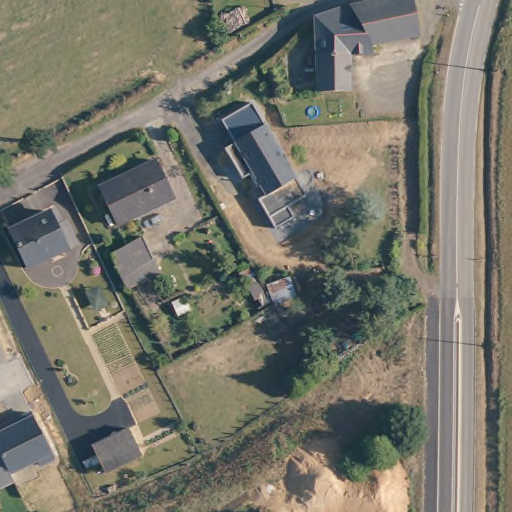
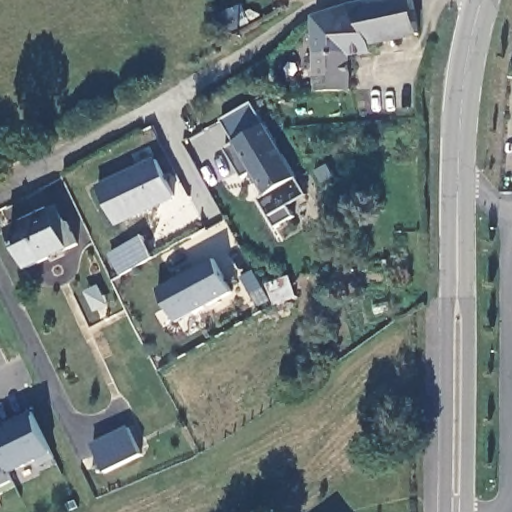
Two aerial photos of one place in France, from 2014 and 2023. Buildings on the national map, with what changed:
unchanged [(407,0),(417,0),(422,37),(376,48),(377,56),(354,58),(355,93),(323,94),(321,26),(321,18),(407,0)]
unchanged [(288,206),(295,217),(277,228),(260,199),(265,197),(252,174),(243,178),(226,149),(237,142),(223,120),(252,103),(307,195),(307,196),(288,206)]
unchanged [(158,159),(174,196),(117,224),(98,187),(158,159)]
unchanged [(33,273),(13,233),(55,213),(61,227),(69,223),(82,249),(33,273)]
unchanged [(112,253),(141,236),(152,258),(122,275),(112,253)]
new [(213,259),(234,293),(177,324),(157,289),(213,259)]
unchanged [(87,293),(97,288),(106,304),(95,309),(87,293)]
unchanged [(42,468),(37,463),(12,475),(16,483),(0,491),(0,433),(34,416),(54,455),(57,461),(42,468)]
unchanged [(132,431),(146,458),(111,477),(97,450),(132,431)]

